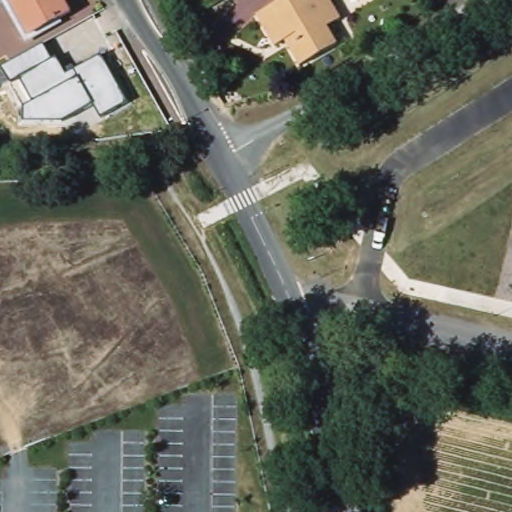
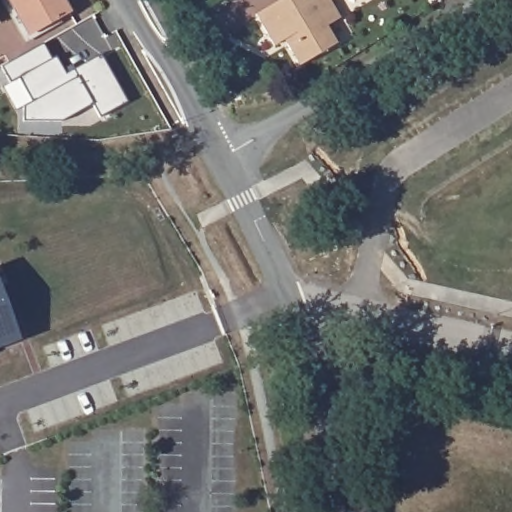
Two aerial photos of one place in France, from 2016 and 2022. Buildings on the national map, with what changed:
unchanged [(38,32),(20,0),(75,0),(79,8),(38,32)]
unchanged [(254,14),(276,0),(326,0),(337,17),(324,25),(334,43),(296,65),(285,46),(282,41),(272,46),(254,14)]
unchanged [(99,118),(91,105),(60,121),(24,121),(24,107),(33,102),(20,79),(13,82),(4,68),(42,46),(51,62),(58,59),(68,76),(100,57),(126,102),(99,118)]
new [(0,345),(0,285),(20,337),(0,345)]

